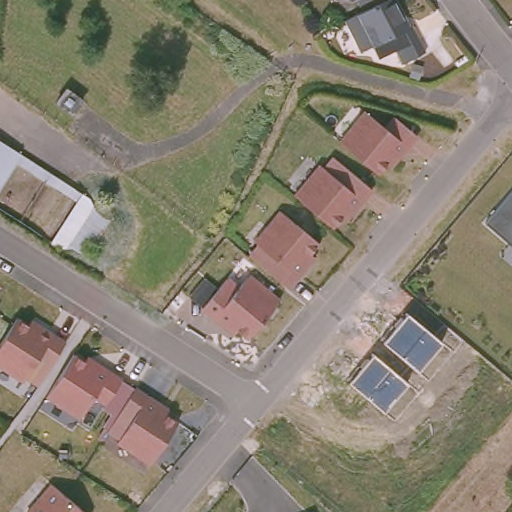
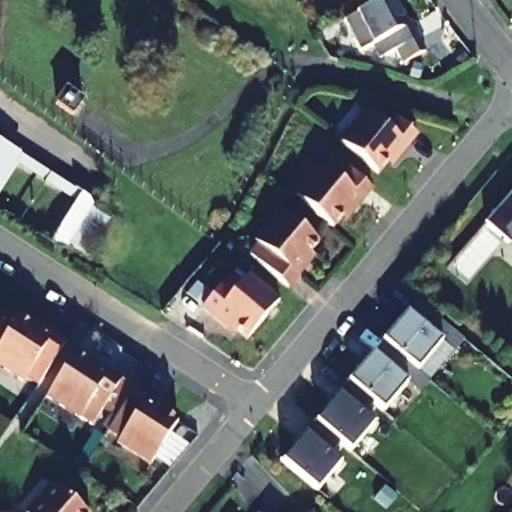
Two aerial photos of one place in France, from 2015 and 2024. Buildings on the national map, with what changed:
unchanged [(409,16),(422,44),(398,55),(392,42),(383,46),(376,33),(354,41),(340,14),(360,4),(366,0),(395,0),(404,18),(409,16)]
unchanged [(358,0),(366,0),(360,4),(358,0)]
unchanged [(74,110),(57,99),(67,84),(84,94),(74,110)]
unchanged [(365,113),(384,130),(394,119),(416,138),(397,160),(393,157),(377,176),(339,144),(365,113)]
unchanged [(18,146),(18,147),(0,174),(0,135),(18,146)]
unchanged [(319,167),(323,170),(332,159),(371,192),(351,214),(348,211),(331,230),(328,228),(293,198),(319,167)]
unchanged [(116,215),(89,253),(49,235),(84,180),(116,215)]
unchanged [(512,193),(512,246),(486,224),(512,193)]
unchanged [(256,248),(252,244),(277,214),(316,245),(300,264),(304,268),(285,291),(247,259),(256,248)]
unchanged [(225,280),(236,289),(247,278),(277,303),(244,342),(226,326),(223,330),(200,309),(225,280)]
unchanged [(444,344),(419,372),(383,342),(408,314),(444,344)]
unchanged [(44,369),(33,384),(22,377),(19,382),(0,369),(0,337),(14,315),(35,329),(38,325),(62,341),(44,369)]
unchanged [(409,384),(384,412),(350,383),(373,355),(409,384)]
unchanged [(88,371),(91,367),(116,383),(100,408),(88,399),(74,421),(40,399),(68,357),(88,371)]
new [(346,385),(371,406),(361,417),(371,426),(348,454),(313,424),(346,385)]
unchanged [(154,408),(151,412),(172,425),(145,467),(111,445),(114,441),(102,433),(115,414),(129,391),(154,408)]
new [(313,424),(338,445),(328,456),(338,465),(315,493),(279,463),(313,424)]
unchanged [(47,487),(75,512),(24,512),(47,487)]

